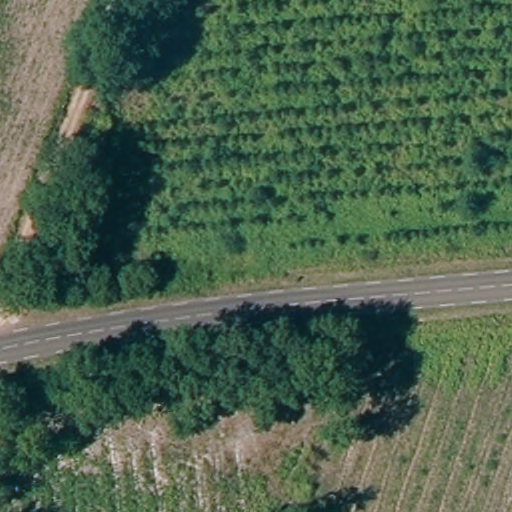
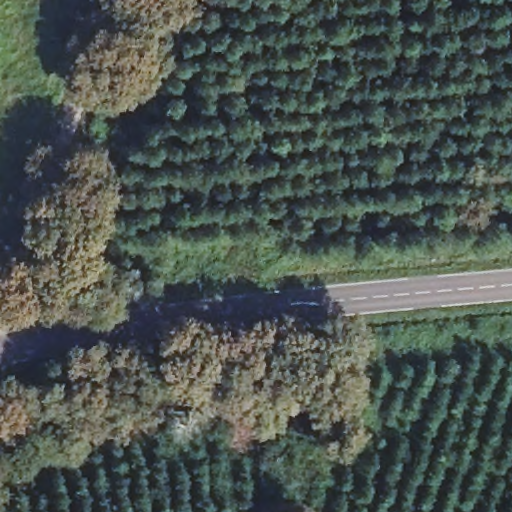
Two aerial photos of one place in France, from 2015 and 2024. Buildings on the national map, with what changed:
[]

